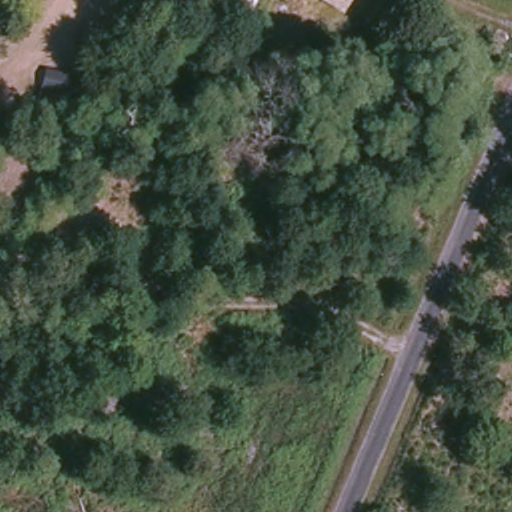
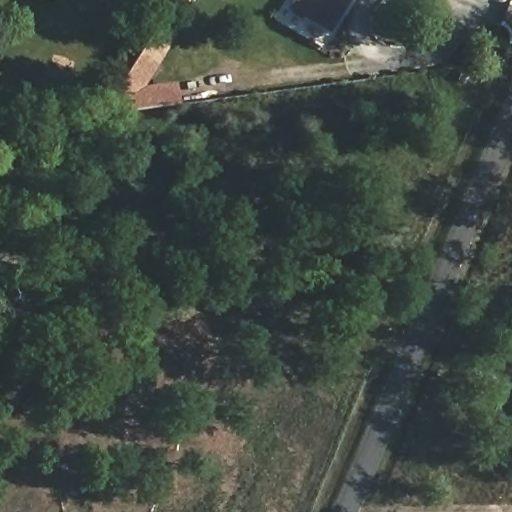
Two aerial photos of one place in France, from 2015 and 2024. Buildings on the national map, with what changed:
unchanged [(330,0),(343,0),(339,6),(330,0)]
new [(178,84),(179,106),(126,112),(117,90),(142,46),(164,54),(147,86),(178,84)]
unchanged [(70,74),(67,92),(40,86),(43,68),(70,74)]

